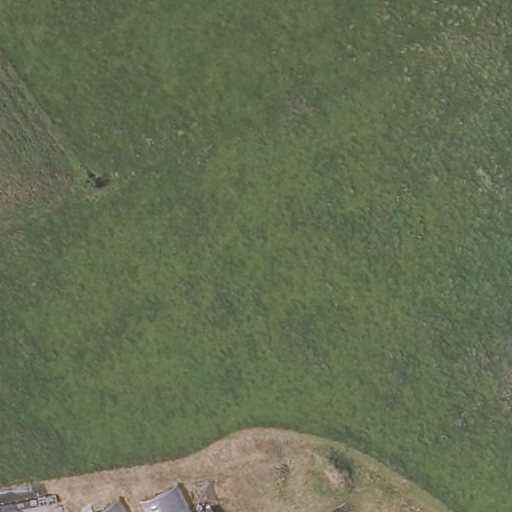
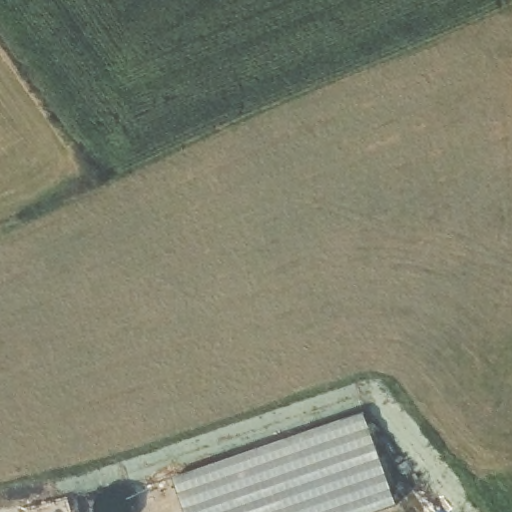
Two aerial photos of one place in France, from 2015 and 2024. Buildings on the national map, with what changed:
new [(403,511),(401,512),(183,512),(165,473),(367,405),(403,511)]
demolished [(195,512),(150,512),(143,497),(179,478),(195,512)]
demolished [(127,512),(93,512),(121,501),(127,512)]

